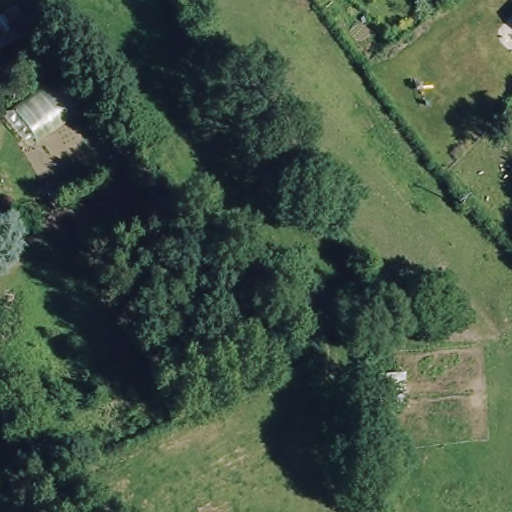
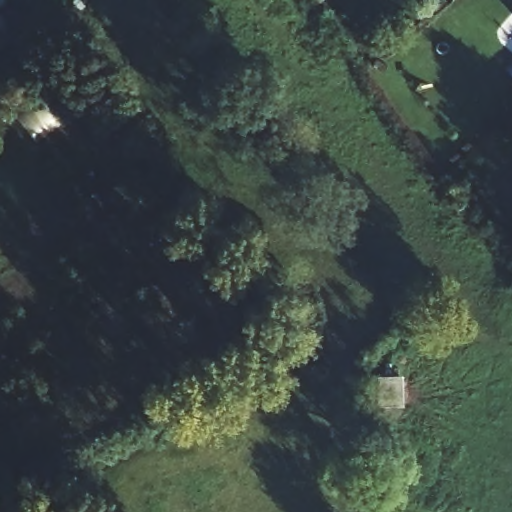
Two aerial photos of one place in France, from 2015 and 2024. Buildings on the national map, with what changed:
unchanged [(5,56),(0,48),(0,10),(15,0),(17,0),(38,33),(5,56)]
unchanged [(510,8),(512,6),(512,9),(510,8)]

